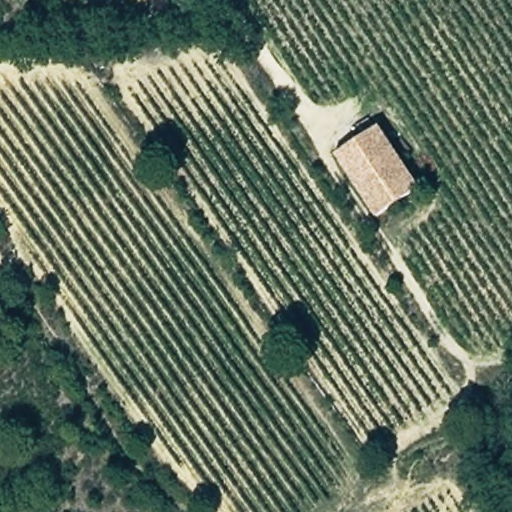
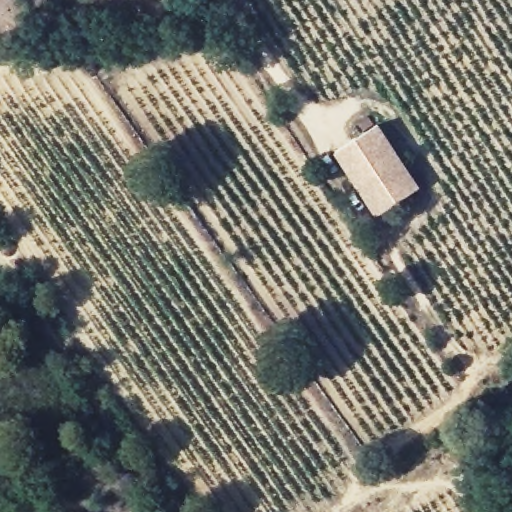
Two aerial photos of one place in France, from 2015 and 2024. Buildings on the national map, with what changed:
unchanged [(382,130),(424,194),(381,221),(340,158),(382,130)]

